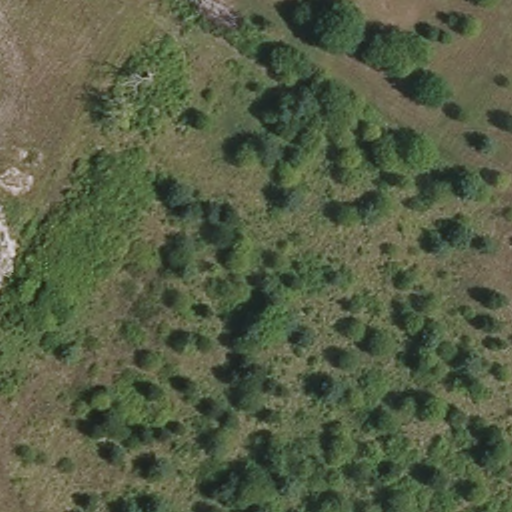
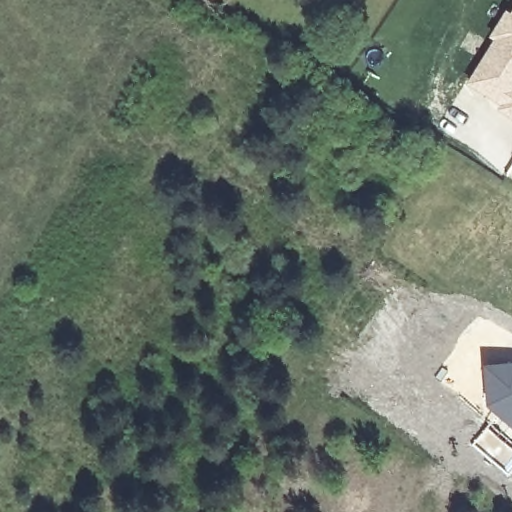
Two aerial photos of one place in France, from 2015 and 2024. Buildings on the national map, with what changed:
new [(498,41),(493,38),(508,15),(512,17),(512,119),(500,112),(504,107),(492,100),(470,86),(480,69),(498,41)]
new [(512,360),(512,430),(487,409),(482,364),(512,360)]

